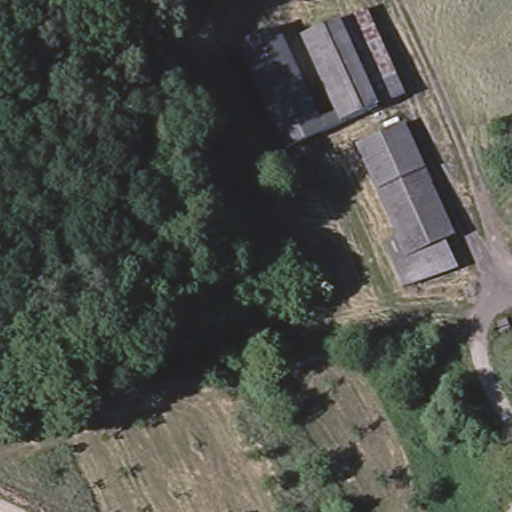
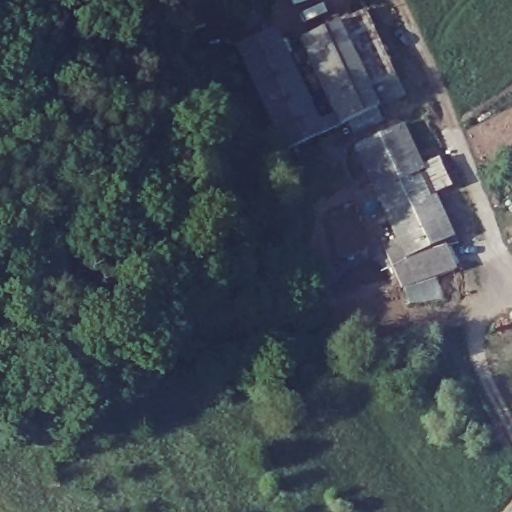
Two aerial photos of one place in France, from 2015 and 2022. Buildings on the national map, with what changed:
unchanged [(380,105),(342,121),(337,112),(303,35),(365,6),(396,75),(405,94),(380,105)]
unchanged [(287,146),(241,40),(277,24),(320,120),(337,112),(342,121),(287,146)]
unchanged [(405,121),(456,235),(448,238),(458,262),(405,286),(387,242),(400,236),(358,143),(405,121)]

